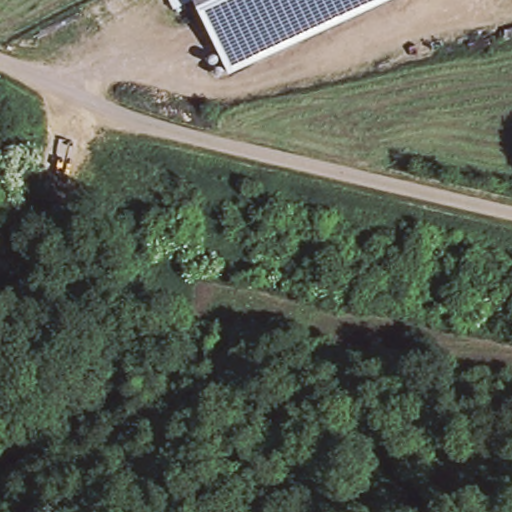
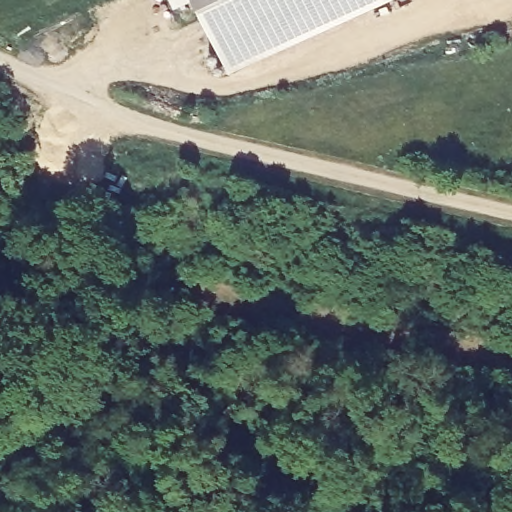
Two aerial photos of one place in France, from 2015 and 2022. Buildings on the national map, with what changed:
unchanged [(230,71),(198,0),(386,0),(230,71)]

